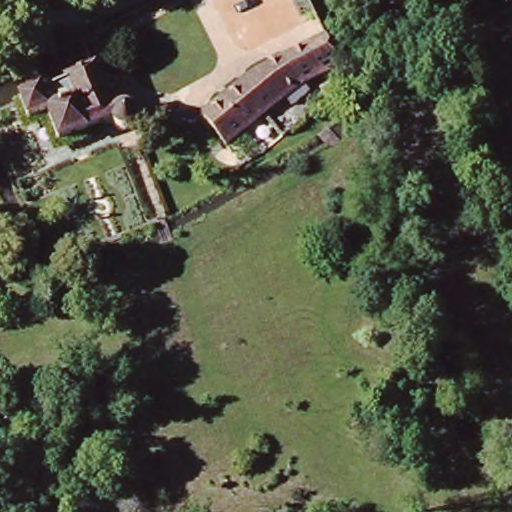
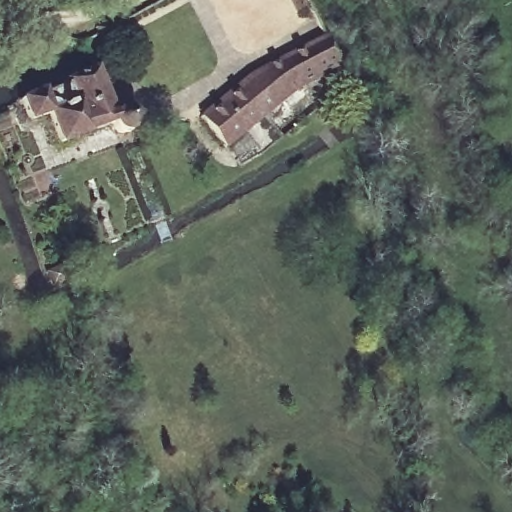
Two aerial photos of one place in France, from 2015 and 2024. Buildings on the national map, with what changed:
unchanged [(273,59),(315,37),(332,66),(290,89),(273,59)]
unchanged [(273,59),(290,89),(224,143),(200,117),(273,59)]
unchanged [(135,124),(127,131),(116,130),(108,117),(60,140),(49,115),(31,122),(22,98),(38,92),(41,98),(70,85),(67,77),(95,67),(111,105),(132,110),(135,124)]

